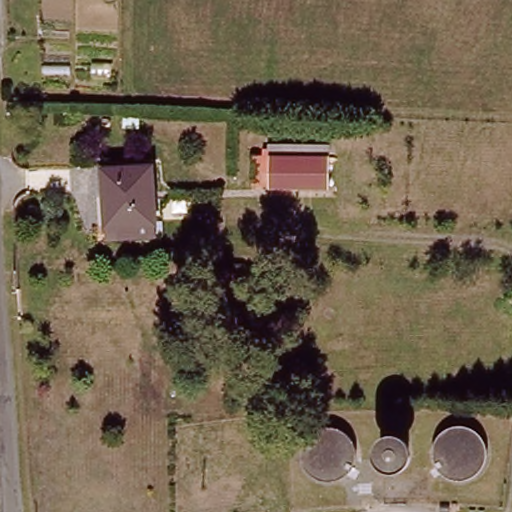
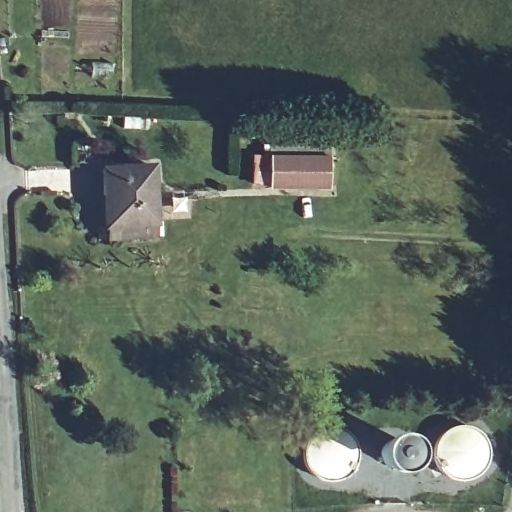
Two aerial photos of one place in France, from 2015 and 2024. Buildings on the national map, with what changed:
unchanged [(268,142),(331,145),(330,157),(330,187),(266,183),(267,154),(268,142)]
unchanged [(106,225),(105,165),(153,164),(156,239),(98,242),(97,225),(106,225)]

